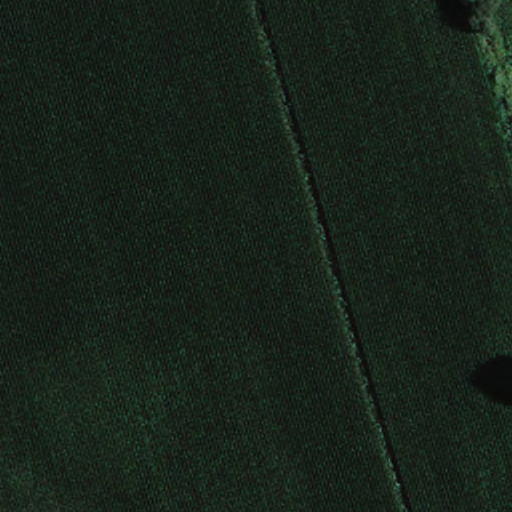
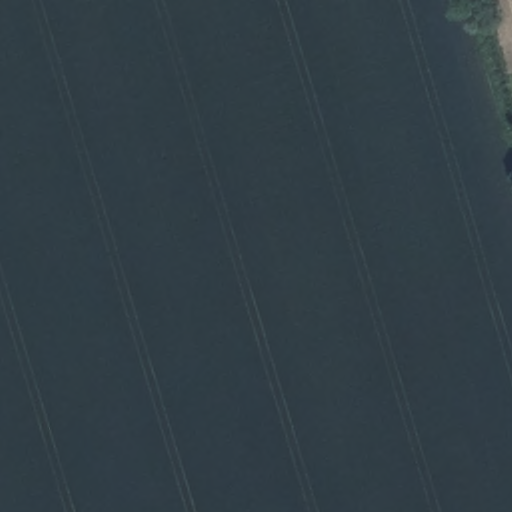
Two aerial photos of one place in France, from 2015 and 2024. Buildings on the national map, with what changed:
[]

